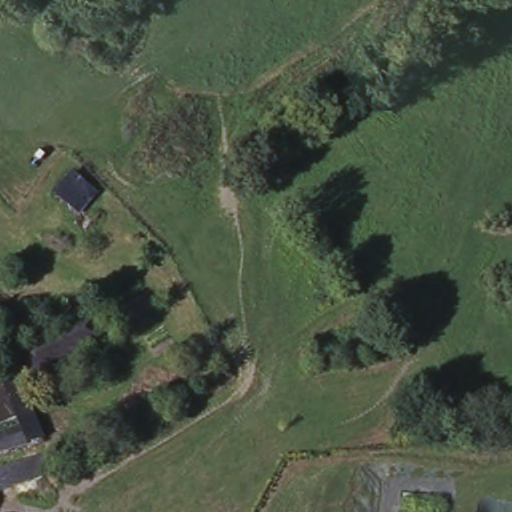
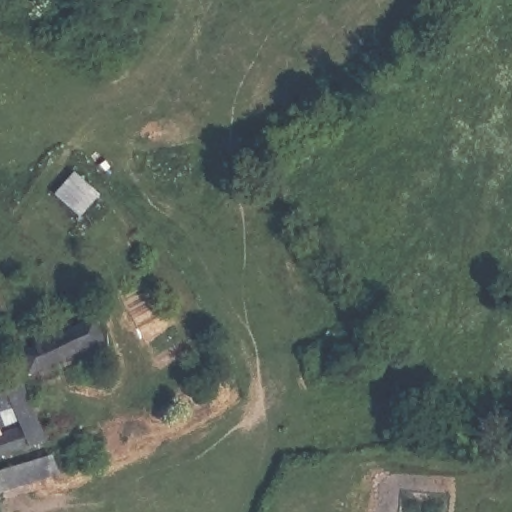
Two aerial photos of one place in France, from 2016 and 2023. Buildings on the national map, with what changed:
unchanged [(68,174),(95,197),(79,219),(51,194),(68,174)]
unchanged [(94,310),(104,329),(30,368),(20,348),(94,310)]
unchanged [(14,376),(17,386),(26,414),(0,421),(0,381),(14,376)]
unchanged [(26,430),(17,432),(13,418),(26,414),(36,411),(41,426),(45,442),(30,446),(0,454),(0,437),(26,430)]
unchanged [(49,460),(55,474),(0,496),(0,478),(49,460)]

